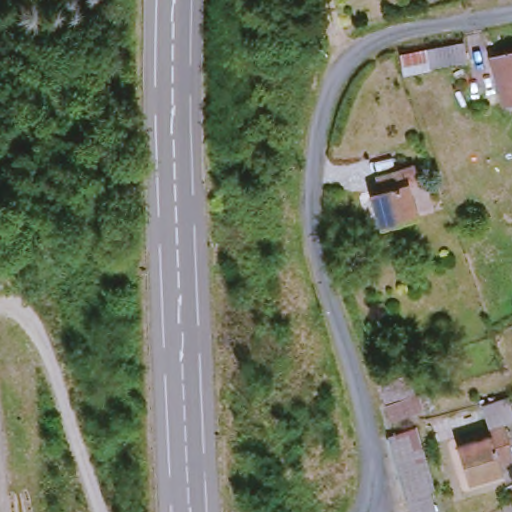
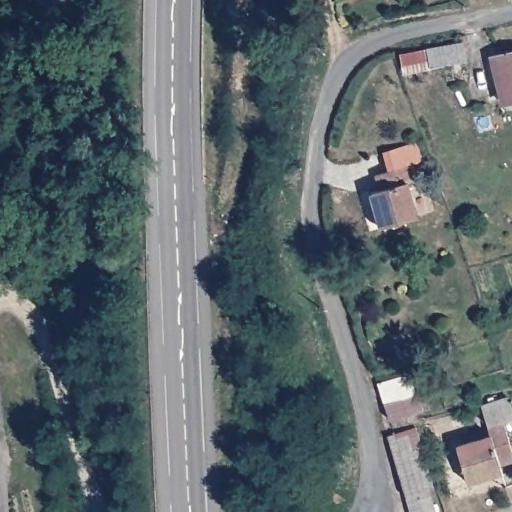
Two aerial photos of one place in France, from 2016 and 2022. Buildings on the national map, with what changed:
unchanged [(400,55),(466,44),(471,62),(405,78),(400,55)]
unchanged [(512,56),(512,105),(507,106),(497,59),(512,56)]
unchanged [(373,195),(382,192),(378,179),(413,166),(418,181),(410,185),(418,217),(382,227),(373,195)]
unchanged [(383,413),(377,397),(379,397),(372,375),(403,368),(409,388),(413,404),(383,413)]
unchanged [(459,447),(490,438),(482,409),(510,401),(512,410),(512,423),(502,426),(510,463),(496,467),(497,475),(468,482),(459,447)]
unchanged [(390,442),(419,434),(437,492),(430,494),(407,500),(400,474),(390,442)]
unchanged [(411,512),(407,500),(430,494),(436,512),(411,512)]

